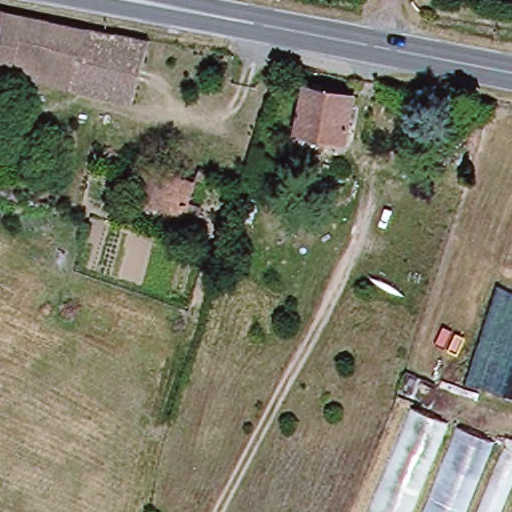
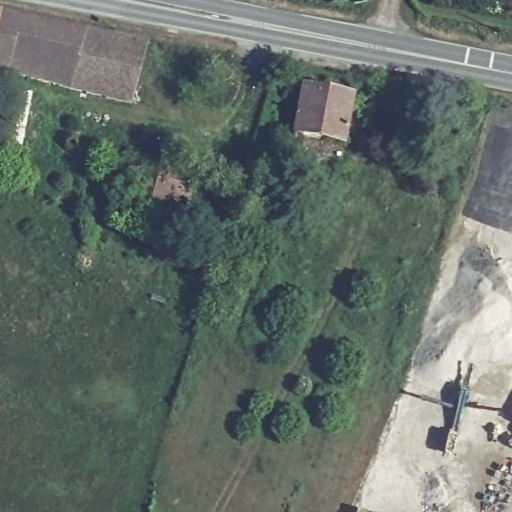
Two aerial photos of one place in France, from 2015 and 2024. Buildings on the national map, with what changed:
unchanged [(0,31),(0,12),(5,13),(0,31)]
unchanged [(0,31),(5,13),(152,41),(136,106),(112,99),(9,71),(4,94),(0,108),(0,31)]
unchanged [(302,81),(353,92),(344,134),(317,128),(312,146),(290,142),(302,81)]
unchanged [(199,171),(185,217),(125,200),(139,153),(199,171)]
demolished [(512,294),(512,401),(463,382),(496,288),(512,294)]
demolished [(512,449),(512,476),(497,512),(360,512),(406,406),(512,449)]

